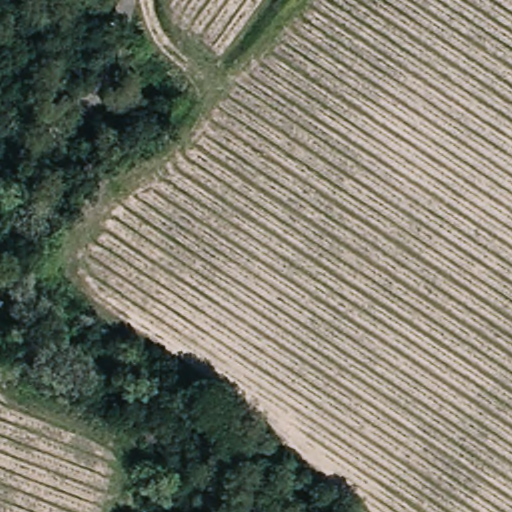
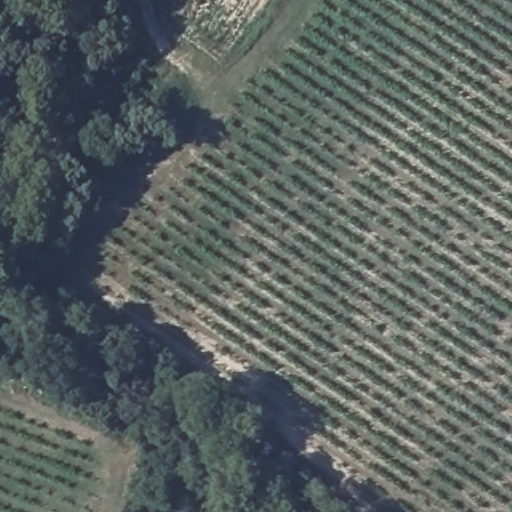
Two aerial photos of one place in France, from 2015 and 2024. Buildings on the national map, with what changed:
[]

